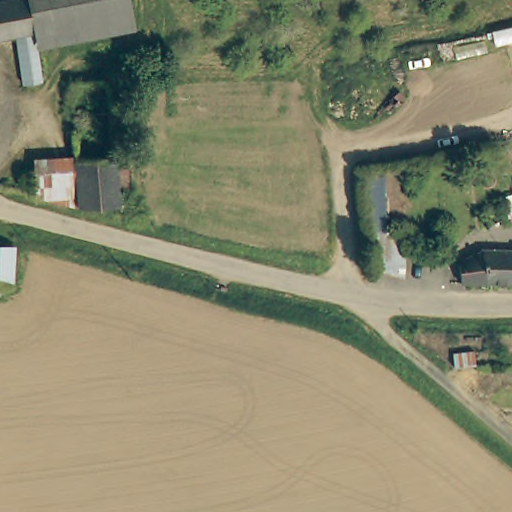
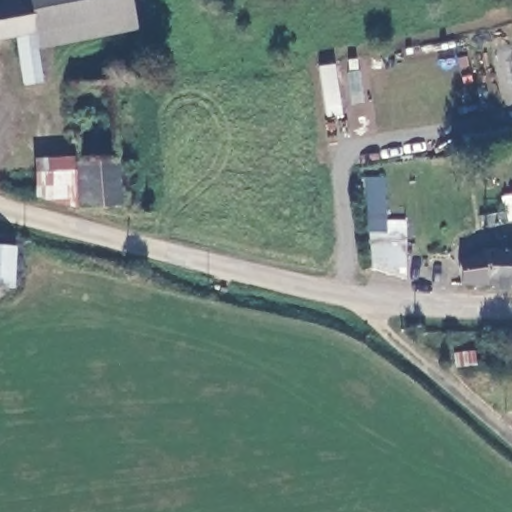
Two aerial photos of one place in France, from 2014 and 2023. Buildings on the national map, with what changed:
unchanged [(0,39),(0,1),(1,1),(7,0),(30,0),(36,35),(36,36),(44,84),(25,88),(16,37),(0,39)]
unchanged [(1,0),(7,0),(1,1),(1,0)]
unchanged [(134,21),(36,35),(30,0),(131,0),(134,21)]
unchanged [(78,160),(120,156),(124,207),(82,209),(78,160)]
unchanged [(35,158),(78,157),(78,160),(82,209),(39,198),(35,158)]
unchanged [(375,172),(393,171),(398,226),(416,228),(419,271),(387,262),(375,172)]
unchanged [(501,198),(512,194),(512,221),(507,223),(501,198)]
unchanged [(18,284),(0,284),(0,244),(14,243),(18,284)]
unchanged [(461,287),(461,265),(484,258),(512,257),(512,287),(507,287),(461,287)]

